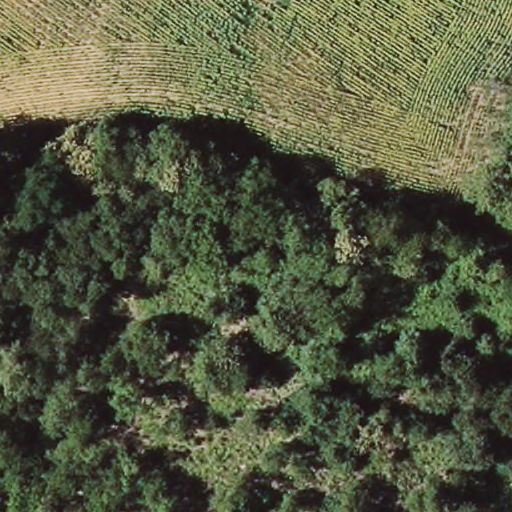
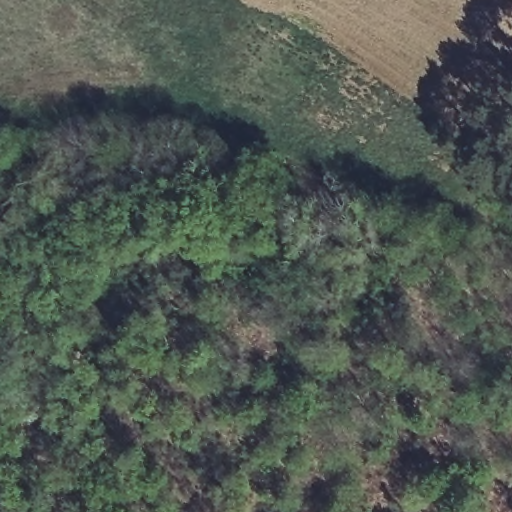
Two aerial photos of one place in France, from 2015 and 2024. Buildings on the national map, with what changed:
[]

